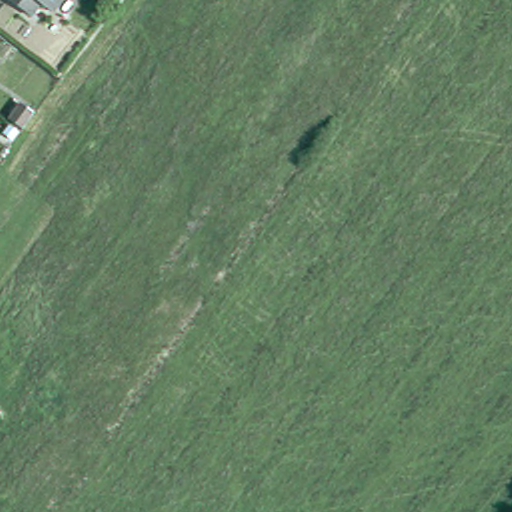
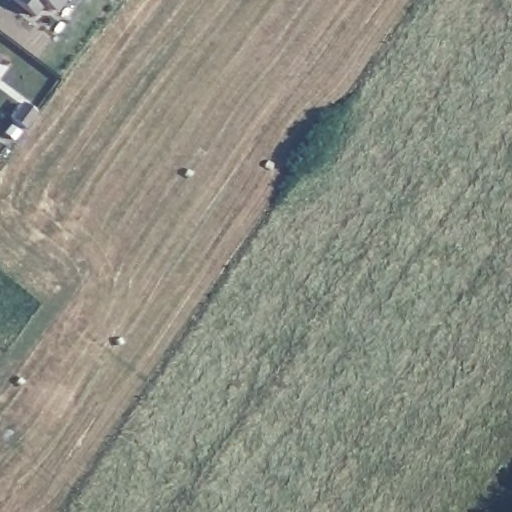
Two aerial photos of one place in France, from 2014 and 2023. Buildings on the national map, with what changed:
unchanged [(1,55),(0,56),(0,54),(1,55)]

